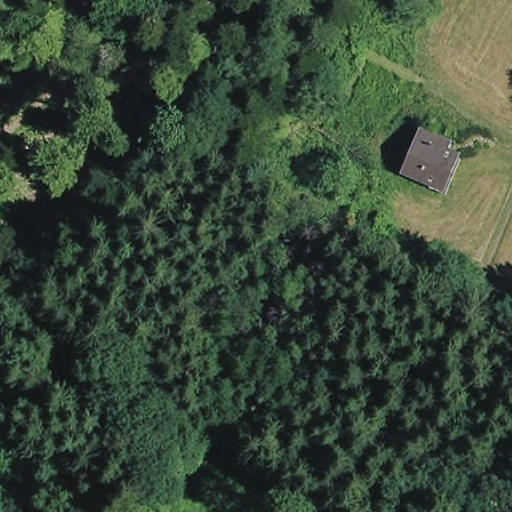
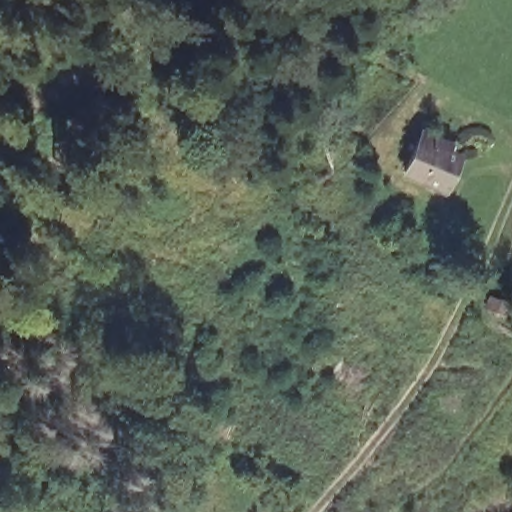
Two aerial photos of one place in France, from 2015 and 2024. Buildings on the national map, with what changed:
unchanged [(450,158),(449,161),(455,163),(440,200),(423,193),(425,188),(400,177),(417,138),(440,147),(439,153),(450,158)]

